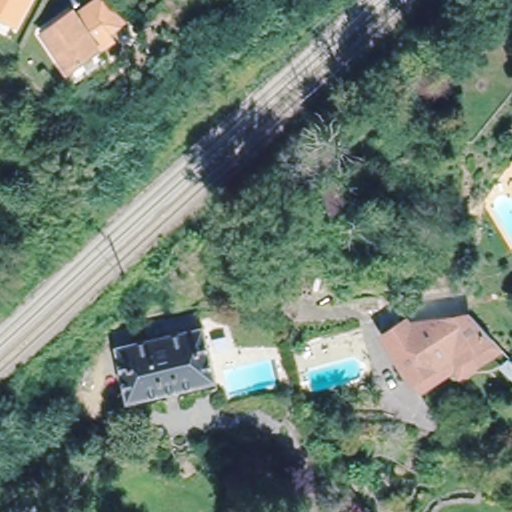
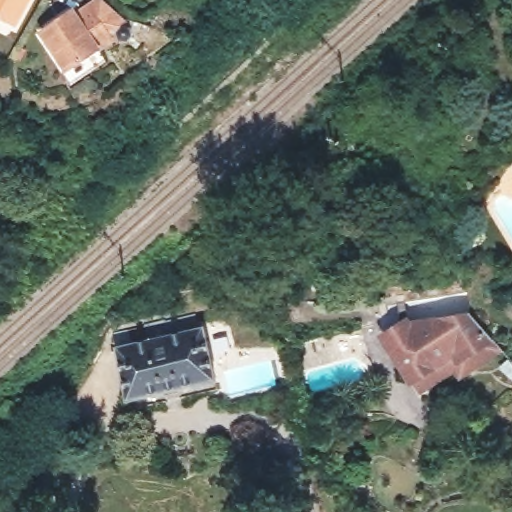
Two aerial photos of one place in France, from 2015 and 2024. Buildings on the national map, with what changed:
unchanged [(18,21),(0,12),(0,0),(29,0),(18,21)]
unchanged [(65,66),(40,29),(56,18),(71,7),(75,13),(89,4),(96,0),(103,0),(123,17),(124,20),(107,31),(111,37),(65,66)]
unchanged [(463,374),(437,334),(409,347),(417,363),(403,371),(400,373),(380,335),(375,324),(387,319),(461,310),(499,352),(463,374)]
unchanged [(119,347),(150,340),(147,326),(177,319),(180,334),(206,328),(217,379),(129,401),(119,347)]
unchanged [(456,378),(451,370),(416,391),(403,371),(417,363),(409,347),(437,334),(463,374),(456,378)]

